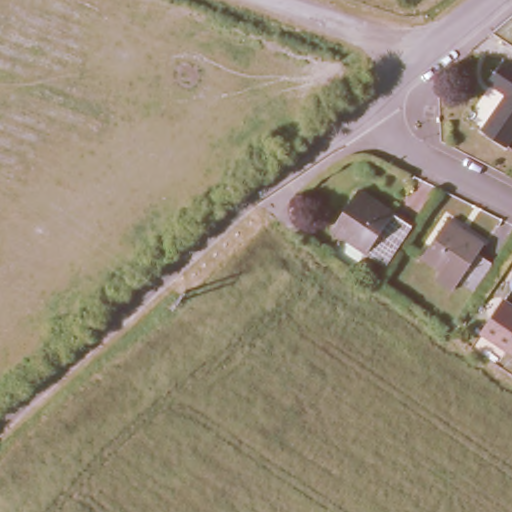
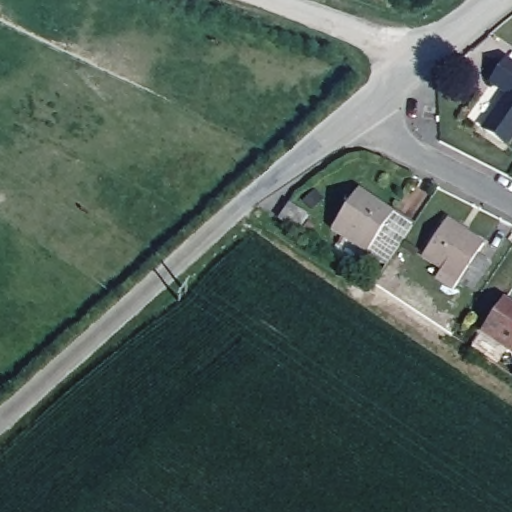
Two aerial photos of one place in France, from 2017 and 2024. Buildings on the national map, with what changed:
unchanged [(483,129),(507,95),(490,82),(505,60),(512,65),(512,132),(503,144),(483,129)]
unchanged [(325,228),(350,191),(405,227),(378,266),(325,228)]
unchanged [(287,205),(305,216),(293,231),(277,219),(287,205)]
unchanged [(477,235),(470,245),(483,255),(465,282),(452,272),(446,280),(428,267),(433,260),(415,247),(440,211),(477,235)]
unchanged [(300,229),(305,222),(311,227),(307,233),(300,229)]
unchanged [(512,302),(512,348),(480,327),(501,295),(512,302)]
unchanged [(450,318),(458,324),(450,336),(442,330),(450,318)]

